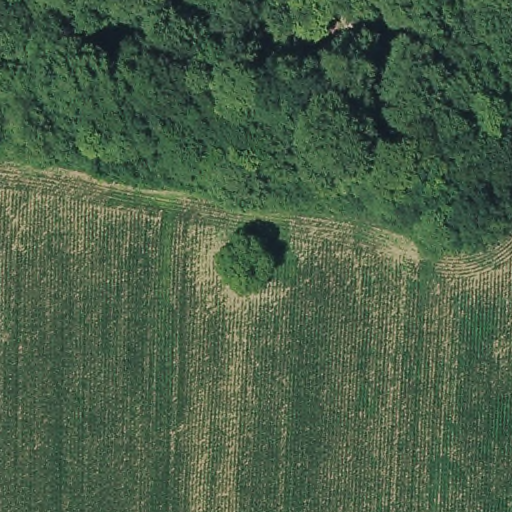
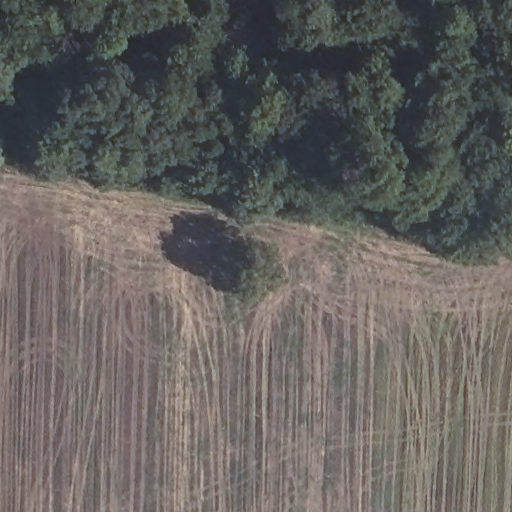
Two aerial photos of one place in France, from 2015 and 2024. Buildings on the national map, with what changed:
unchanged [(251,19),(246,58),(200,59),(201,19),(251,19)]

